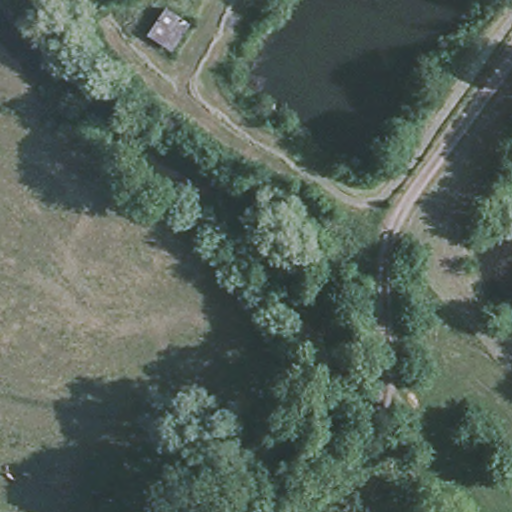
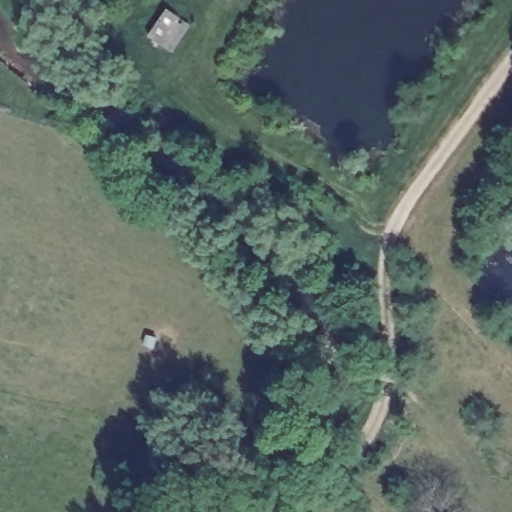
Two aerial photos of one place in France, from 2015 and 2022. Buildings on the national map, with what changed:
unchanged [(192,26),(173,49),(148,33),(168,5),(192,26)]

